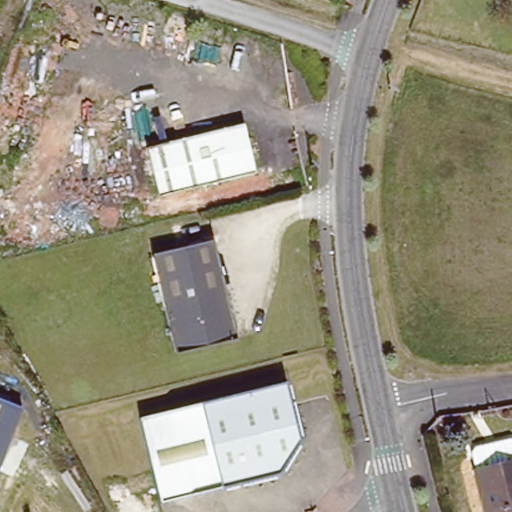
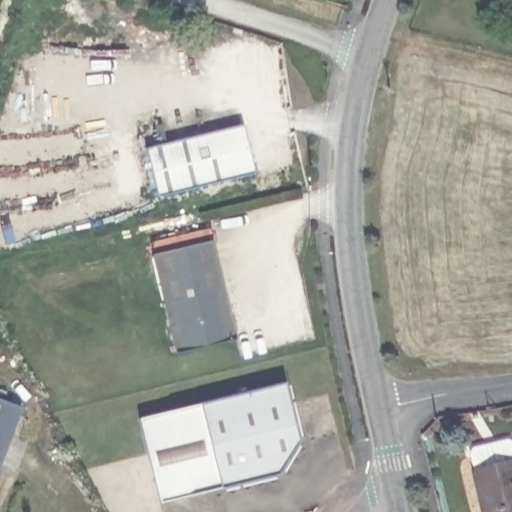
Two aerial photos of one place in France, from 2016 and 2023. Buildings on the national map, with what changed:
unchanged [(243,121),(258,175),(156,200),(146,148),(243,121)]
unchanged [(238,341),(179,355),(154,255),(213,240),(238,341)]
unchanged [(286,391),(306,460),(296,480),(164,509),(145,423),(286,391)]
unchanged [(0,401),(28,412),(0,483),(0,401)]
unchanged [(479,468),(512,461),(512,512),(487,512),(479,468)]

